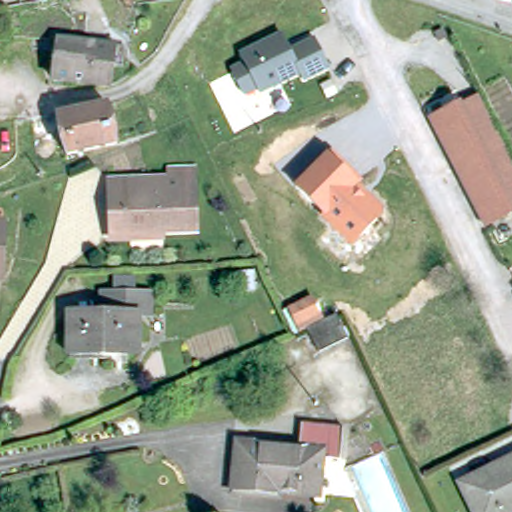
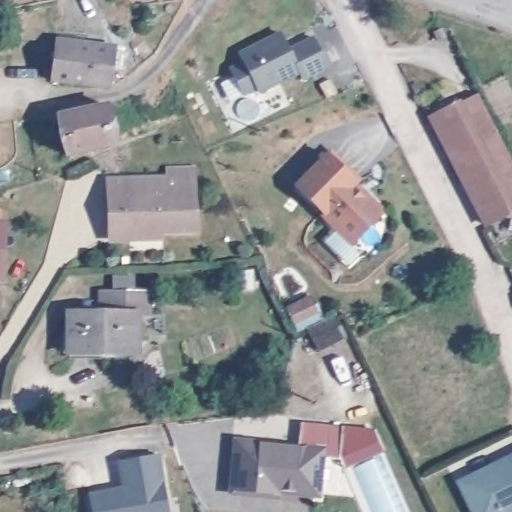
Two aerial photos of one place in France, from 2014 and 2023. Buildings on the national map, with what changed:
unchanged [(328,65),(302,79),(299,72),(259,93),(256,89),(245,95),(243,95),(230,70),(232,69),(243,64),(239,55),(280,34),(288,50),(313,36),(328,65)]
unchanged [(115,49),(125,50),(123,69),(112,68),(110,87),(54,80),(60,40),(115,46),(115,49)]
unchanged [(453,160),(456,151),(453,146),(448,149),(432,118),(479,94),(506,147),(460,171),(453,160)]
unchanged [(66,153),(58,115),(108,105),(116,142),(66,153)]
unchanged [(512,158),(512,212),(487,225),(471,194),(476,191),(473,185),(465,183),(460,171),(506,147),(512,158)]
unchanged [(358,182),(382,207),(382,215),(350,245),(320,216),(322,215),(293,185),(327,151),(358,182)]
unchanged [(164,231),(165,233),(112,235),(111,210),(110,180),(117,180),(168,177),(168,170),(195,168),(195,178),(198,230),(164,231)]
unchanged [(0,273),(0,212),(3,212),(3,225),(1,273),(0,273)]
unchanged [(68,353),(68,313),(102,313),(102,292),(150,291),(150,312),(138,312),(138,352),(68,353)]
unchanged [(318,351),(306,327),(335,315),(347,337),(318,351)]
unchanged [(232,492),(238,445),(266,447),(266,445),(297,449),(301,418),(343,425),(338,458),(320,455),(315,493),(256,488),(256,494),(232,492)]
new [(130,488),(125,462),(163,455),(173,512),(99,512),(96,494),(130,488)]
unchanged [(461,483),(512,459),(512,510),(508,512),(476,512),(461,483)]

